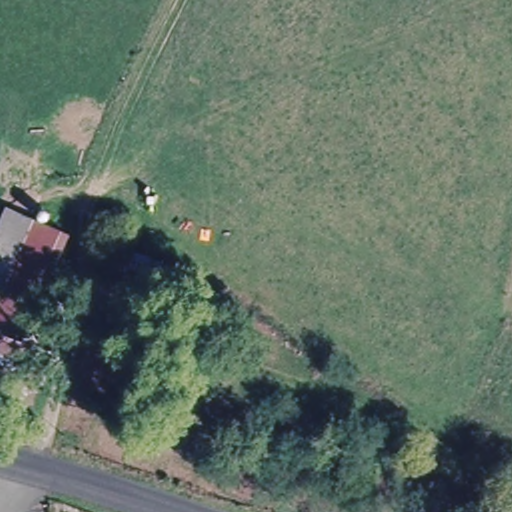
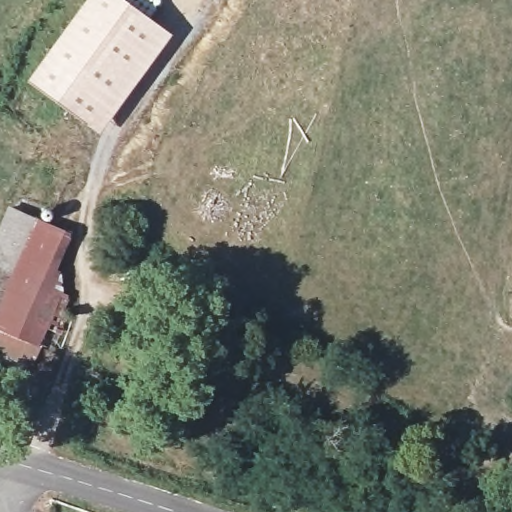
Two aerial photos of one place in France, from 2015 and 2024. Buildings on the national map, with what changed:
new [(100,132),(26,80),(84,0),(127,0),(171,32),(100,132)]
demolished [(72,229),(27,342),(38,346),(23,375),(0,366),(0,201),(2,197),(72,229)]
new [(0,278),(0,207),(31,219),(0,278)]
new [(74,242),(14,359),(0,352),(0,278),(31,219),(74,242)]

